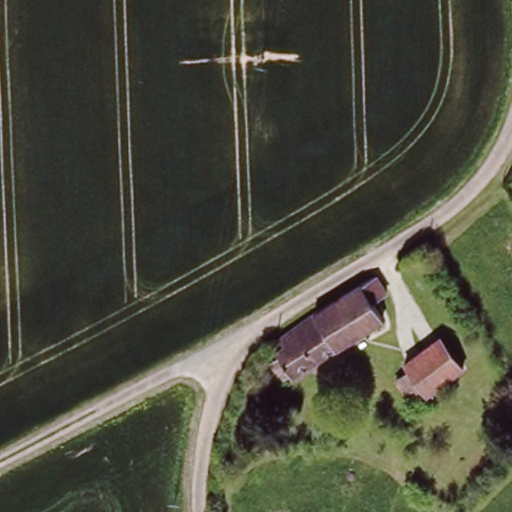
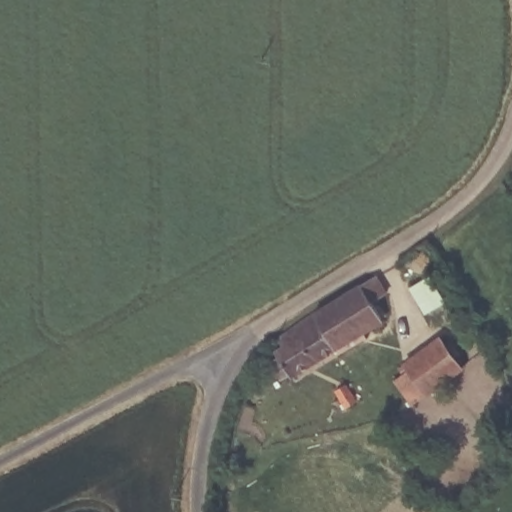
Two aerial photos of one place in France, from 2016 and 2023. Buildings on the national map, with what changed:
unchanged [(281,353),(277,346),(286,340),(281,335),(379,273),(388,288),(377,298),(388,314),(295,374),(291,369),(286,373),(276,357),(281,353)]
unchanged [(431,346),(452,372),(417,398),(398,372),(431,346)]
unchanged [(351,384),(359,396),(354,399),(349,402),(341,390),(351,384)]

